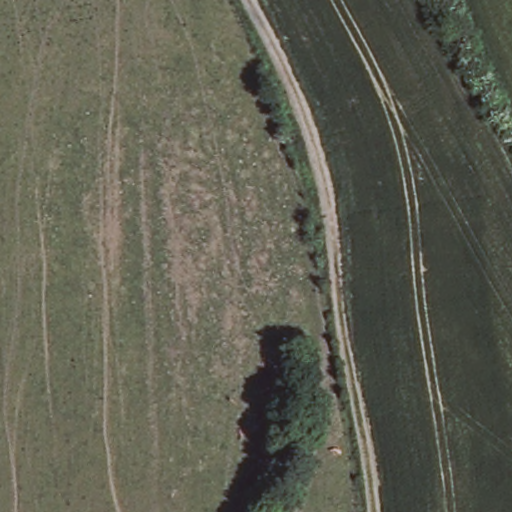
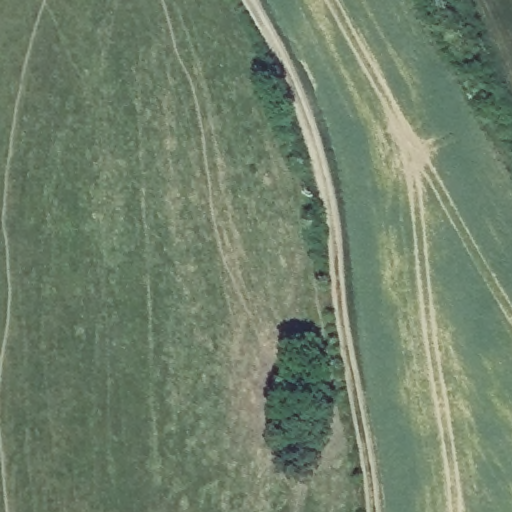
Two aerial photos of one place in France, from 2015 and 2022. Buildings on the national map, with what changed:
[]

